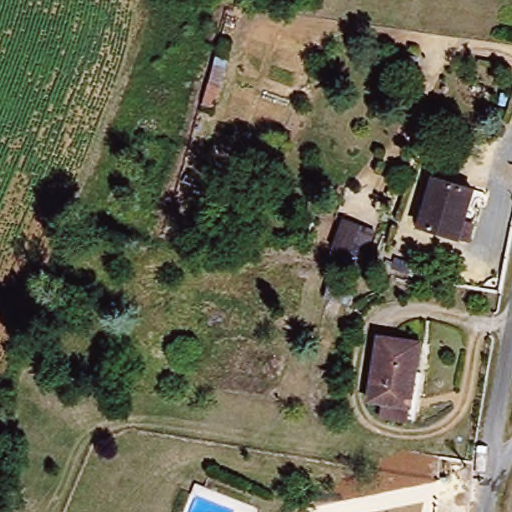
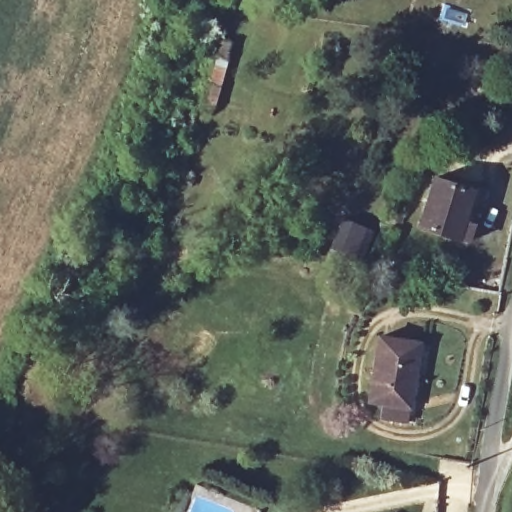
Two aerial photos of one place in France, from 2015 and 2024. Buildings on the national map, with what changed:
unchanged [(469,208),(469,213),(472,214),(462,246),(419,234),(433,185),(482,196),(479,207),(473,205),(469,208)]
unchanged [(368,227),(358,261),(330,253),(339,220),(368,227)]
unchanged [(367,397),(374,335),(423,340),(414,400),(420,402),(417,417),(387,413),(389,399),(367,397)]

